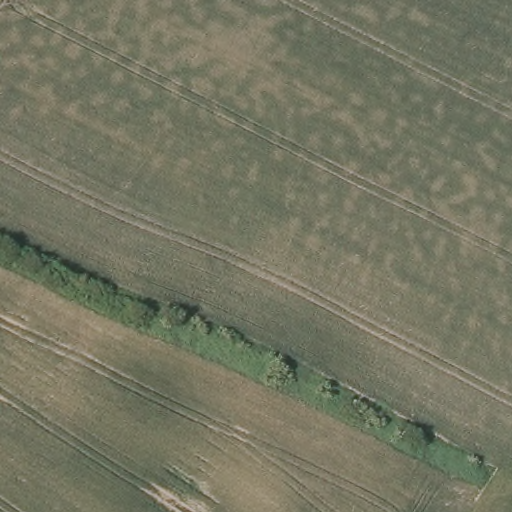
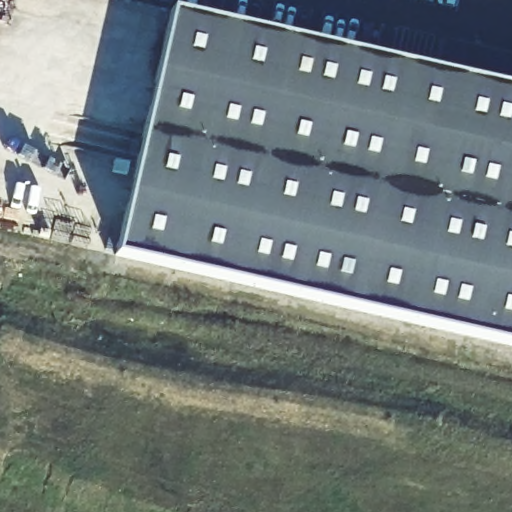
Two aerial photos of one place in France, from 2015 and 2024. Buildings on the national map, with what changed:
new [(435,72),(441,46),(512,62),(512,347),(116,255),(171,15),(435,72)]

